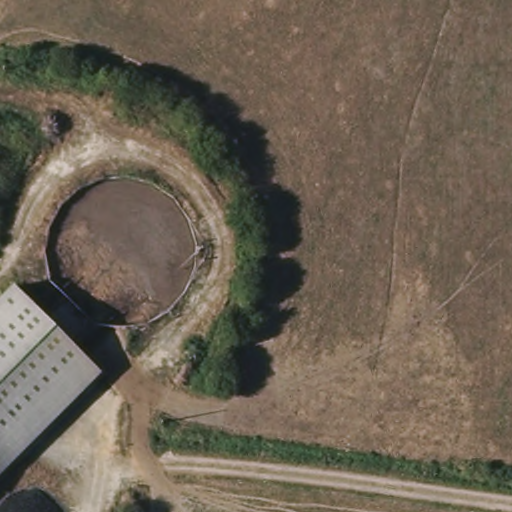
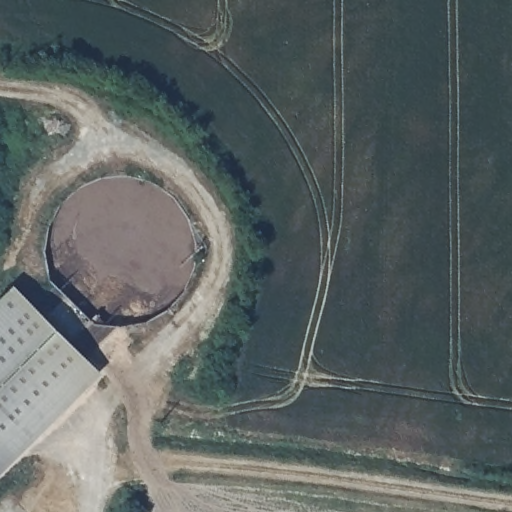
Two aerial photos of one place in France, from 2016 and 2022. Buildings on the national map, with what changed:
unchanged [(19,287),(33,306),(0,337),(0,304),(19,287)]
unchanged [(38,426),(2,459),(0,461),(0,337),(33,306),(99,367),(44,420),(38,426)]

